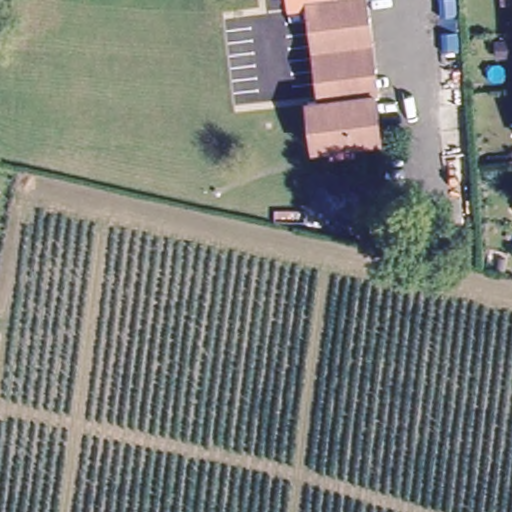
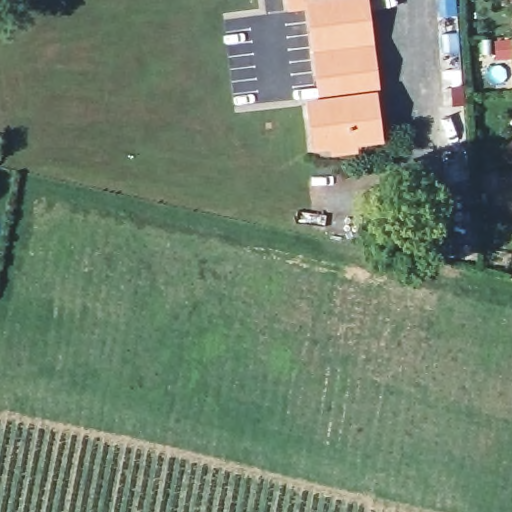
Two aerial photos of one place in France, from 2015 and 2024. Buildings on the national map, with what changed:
unchanged [(287,9),(286,0),(304,0),(305,6),(287,9)]
unchanged [(305,6),(304,0),(360,0),(376,136),(309,144),(303,98),(316,96),(305,6)]

